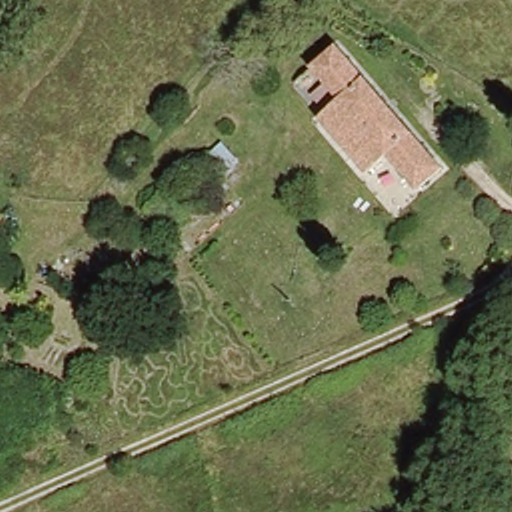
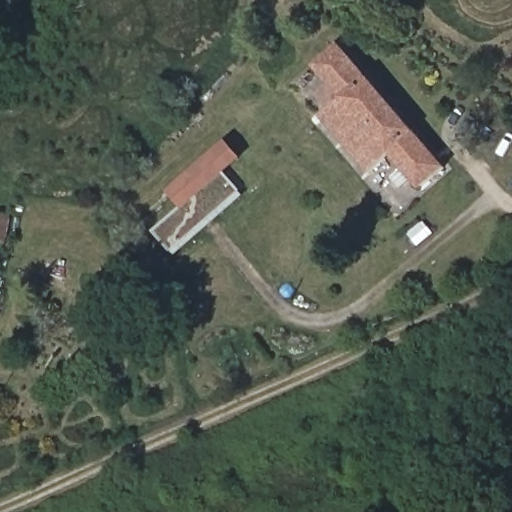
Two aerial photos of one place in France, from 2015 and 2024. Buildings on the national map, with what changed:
unchanged [(447,168),(418,189),(389,153),(366,172),(320,116),(339,97),(312,64),(341,42),(447,168)]
new [(237,160),(239,163),(226,175),(244,196),(176,257),(154,233),(182,209),(169,194),(227,142),(240,157),(237,160)]
unchanged [(0,243),(0,220),(6,221),(0,243)]

